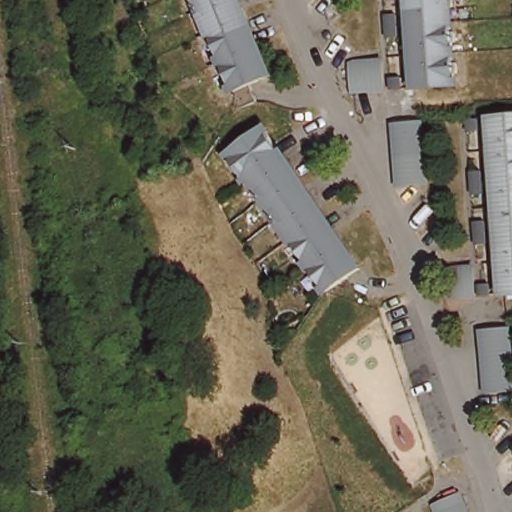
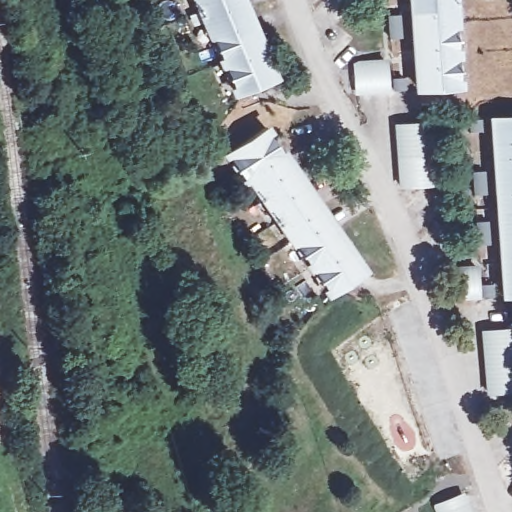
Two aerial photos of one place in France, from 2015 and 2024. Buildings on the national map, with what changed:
unchanged [(238,92),(199,0),(244,0),(276,76),(252,86),(258,102),(242,109),(235,93),(238,92)]
unchanged [(418,94),(411,0),(451,0),(458,91),(418,94)]
unchanged [(391,90),(360,92),(358,62),(390,61),(391,90)]
unchanged [(509,294),(497,120),(512,119),(512,294),(509,294)]
unchanged [(398,186),(394,125),(425,123),(428,184),(398,186)]
unchanged [(332,290),(256,179),(252,182),(233,155),(270,130),(365,268),(332,290)]
unchanged [(482,296),(449,298),(447,268),(480,266),(482,296)]
unchanged [(481,325),(511,323),(512,337),(512,387),(486,388),(481,325)]
unchanged [(467,499),(472,512),(438,512),(438,511),(467,499)]

